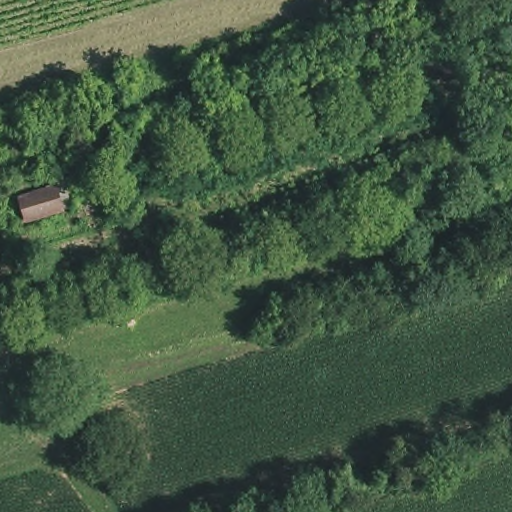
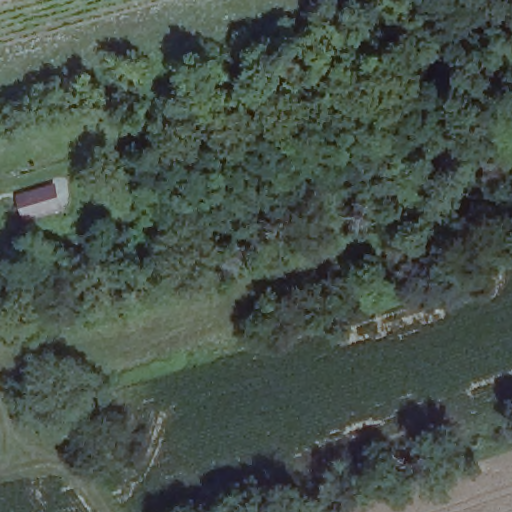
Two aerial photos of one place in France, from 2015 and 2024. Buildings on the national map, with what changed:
unchanged [(35,215),(30,195),(59,186),(65,207),(35,215)]

